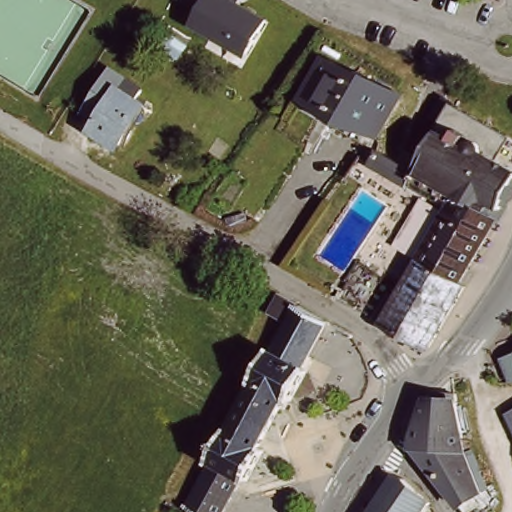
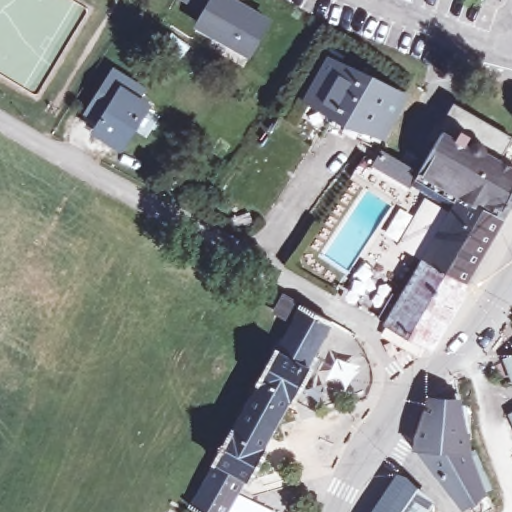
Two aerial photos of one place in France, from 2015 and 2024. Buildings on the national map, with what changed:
unchanged [(243,2),(275,21),(253,58),(198,27),(205,14),(182,0),(245,0),(243,2)]
unchanged [(181,58),(176,54),(164,45),(172,35),(184,45),(188,48),(181,58)]
unchanged [(376,123),(368,136),(328,114),(333,106),(305,89),(327,50),(354,66),(357,61),(398,85),(376,123)]
unchanged [(97,129),(102,121),(89,112),(114,72),(129,81),(123,91),(147,106),(122,145),(97,129)]
unchanged [(425,157),(443,126),(435,121),(450,95),(457,99),(458,100),(512,132),(512,191),(505,204),(500,213),(468,194),(461,190),(451,184),(444,180),(442,182),(435,194),(412,181),(411,182),(375,160),(383,146),(402,157),(407,147),(425,157)]
unchanged [(463,279),(469,282),(434,343),(417,334),(388,318),(379,314),(394,288),(402,293),(423,256),(451,207),(452,205),(435,194),(442,182),(444,180),(451,184),(461,190),(468,194),(500,213),(463,279)]
unchanged [(425,192),(434,197),(451,207),(423,256),(397,241),(403,231),(425,192)]
unchanged [(259,381),(276,350),(278,351),(294,322),(276,312),(277,310),(286,296),(296,301),(294,304),(302,308),(303,306),(332,322),(307,367),(313,370),(295,401),(290,398),(263,447),(234,431),(261,382),(259,381)]
unchanged [(512,359),(512,379),(505,361),(512,359)]
unchanged [(466,512),(463,507),(426,459),(424,449),(418,448),(420,434),(431,401),(438,401),(439,393),(459,394),(460,402),(469,451),(485,493),(489,499),(493,505),(481,512),(466,512)]
unchanged [(511,413),(512,413),(512,416),(511,413)]
unchanged [(232,430),(234,431),(263,447),(268,450),(251,481),(246,478),(227,512),(200,512),(192,507),(217,462),(215,460),(232,430)]
unchanged [(406,479),(432,504),(427,512),(374,512),(397,477),(406,479)]

